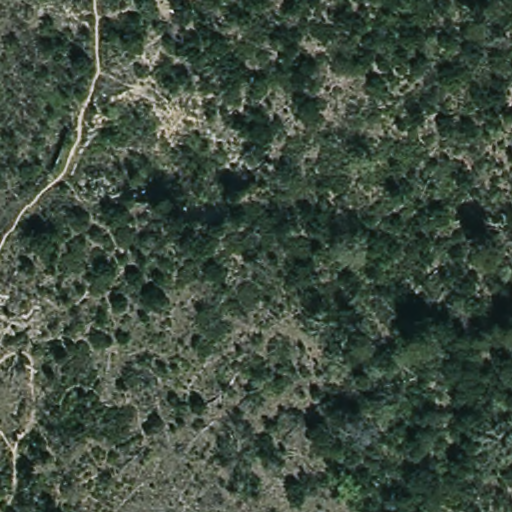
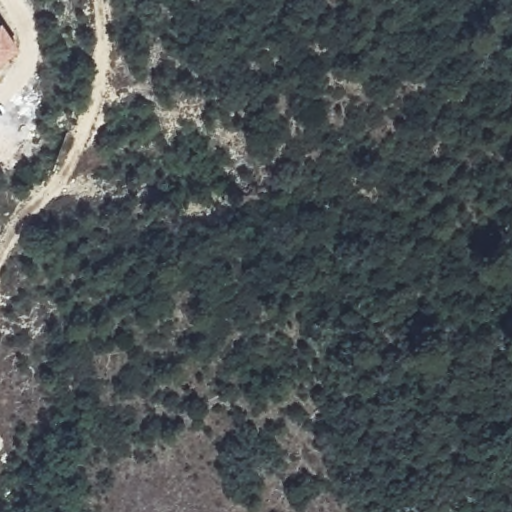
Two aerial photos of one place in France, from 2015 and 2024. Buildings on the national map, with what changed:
new [(0,63),(0,23),(19,50),(0,63)]

